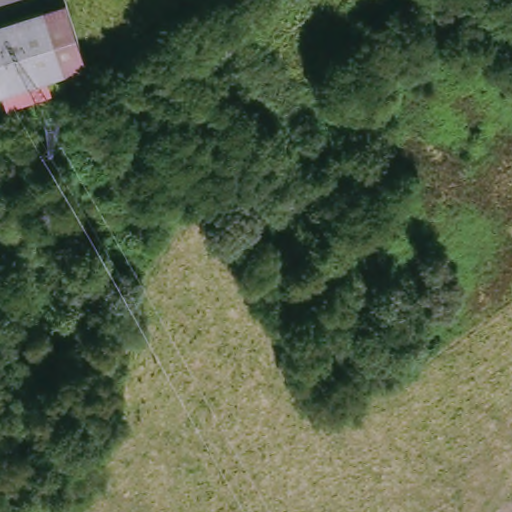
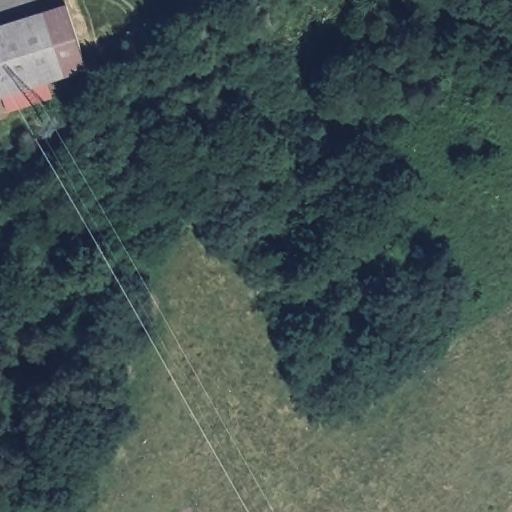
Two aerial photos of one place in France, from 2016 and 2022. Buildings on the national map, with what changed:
unchanged [(90,69),(65,77),(43,14),(69,5),(90,69)]
unchanged [(65,77),(0,99),(0,29),(43,14),(65,77)]

